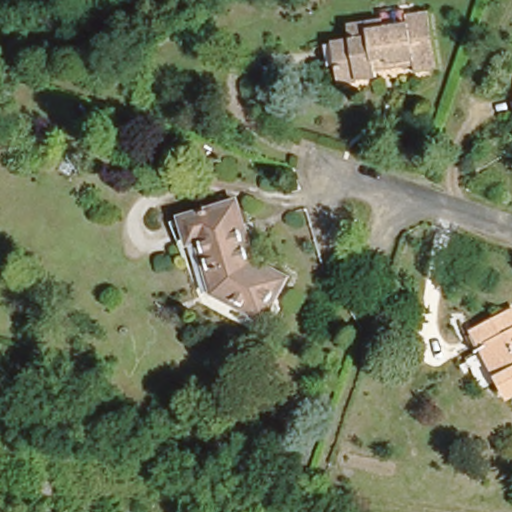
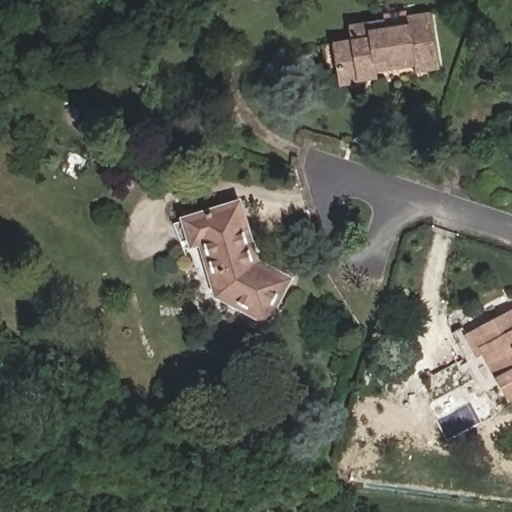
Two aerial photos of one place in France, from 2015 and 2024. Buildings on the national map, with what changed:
unchanged [(322,63),(320,38),(349,35),(348,19),(387,15),(388,27),(410,25),(410,14),(438,12),(440,70),(415,73),(413,63),(391,66),(390,57),(377,60),(377,79),(355,80),(323,82),(322,63)]
unchanged [(204,237),(186,241),(180,215),(245,199),(259,258),(289,276),(263,317),(219,290),(204,237)]
unchanged [(512,391),(482,325),(512,312),(512,391)]

